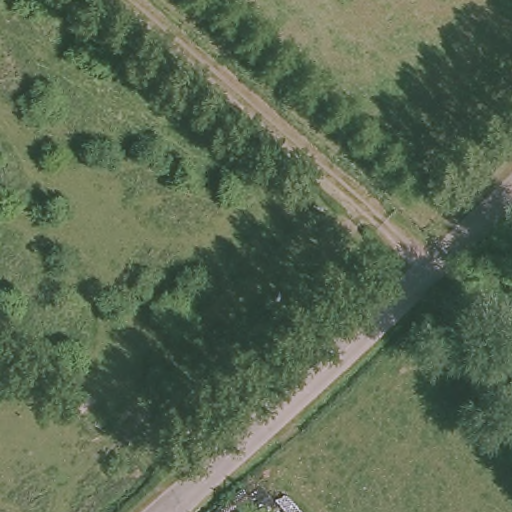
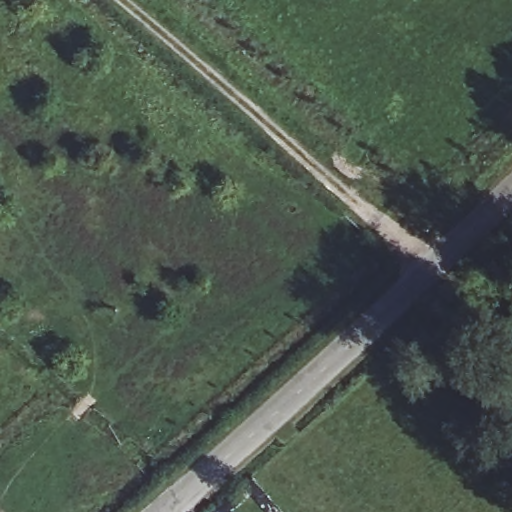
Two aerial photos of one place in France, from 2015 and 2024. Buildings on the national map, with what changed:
unchanged [(485,386),(508,370),(512,375),(512,420),(485,386)]

